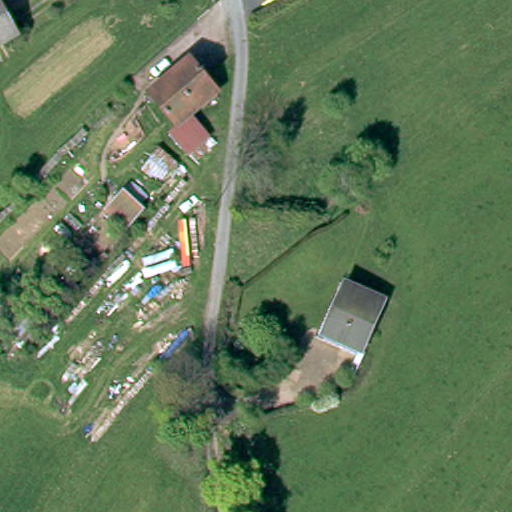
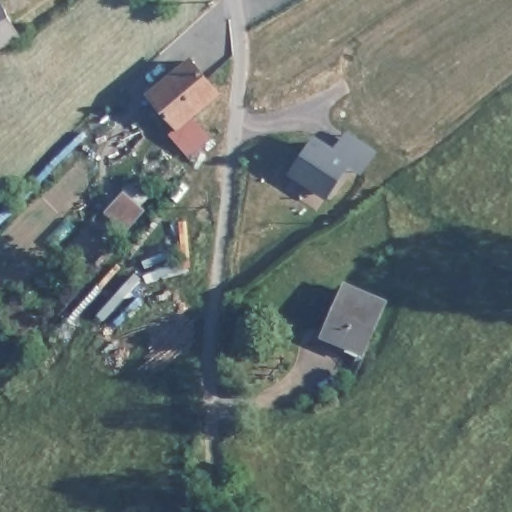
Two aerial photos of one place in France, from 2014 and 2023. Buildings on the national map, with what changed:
unchanged [(0,51),(0,10),(18,40),(0,51)]
unchanged [(191,61),(218,94),(180,128),(152,95),(191,61)]
unchanged [(196,124),(212,150),(188,165),(172,140),(196,124)]
new [(333,155),(347,136),(372,155),(358,173),(347,164),(325,194),(294,171),(315,141),(333,155)]
unchanged [(130,237),(107,211),(125,192),(148,215),(130,237)]
unchanged [(328,340),(350,286),(382,300),(360,355),(328,340)]

